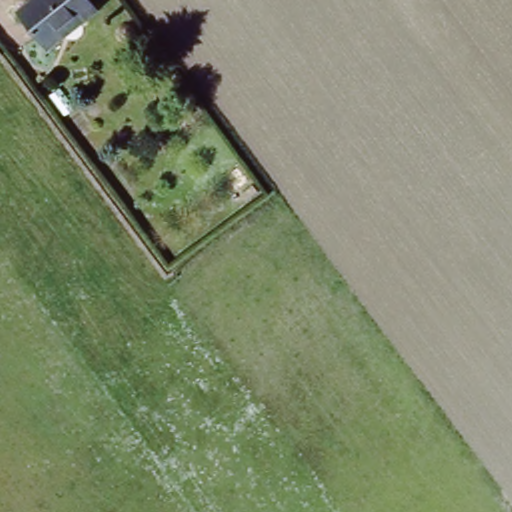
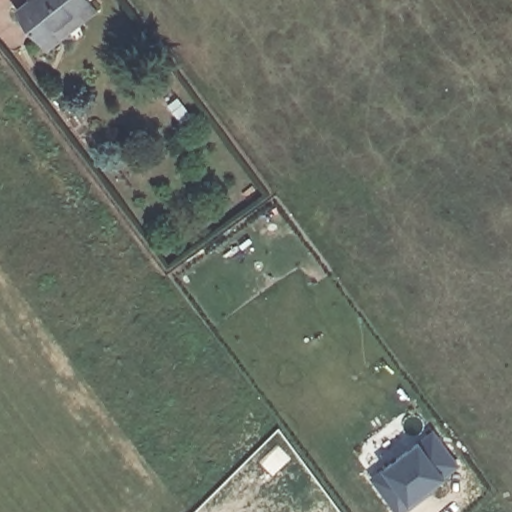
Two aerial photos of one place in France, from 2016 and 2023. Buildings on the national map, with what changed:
unchanged [(50,48),(18,10),(29,0),(89,0),(97,13),(50,48)]
new [(371,475),(385,465),(420,438),(433,429),(460,464),(445,475),(428,487),(431,491),(403,512),(397,512),(371,475)]

